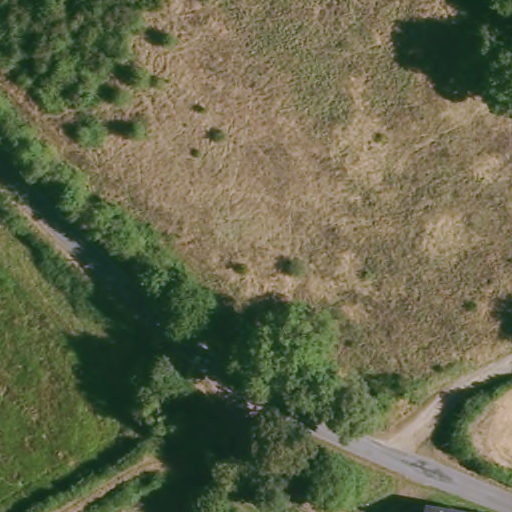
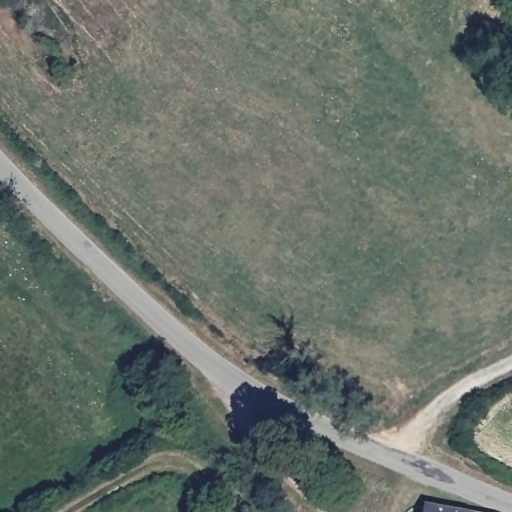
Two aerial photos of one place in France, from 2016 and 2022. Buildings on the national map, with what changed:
unchanged [(446,512),(423,512),(423,507),(446,512)]

